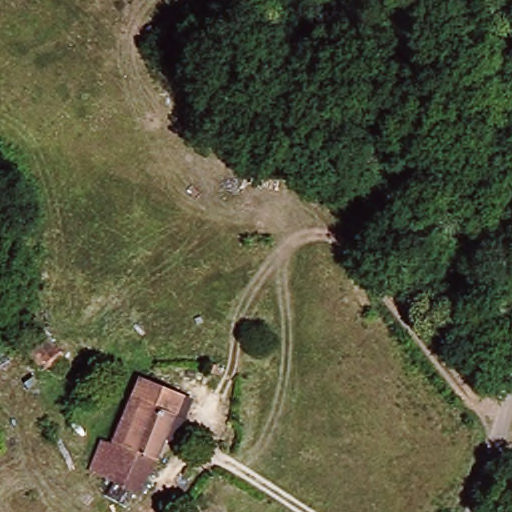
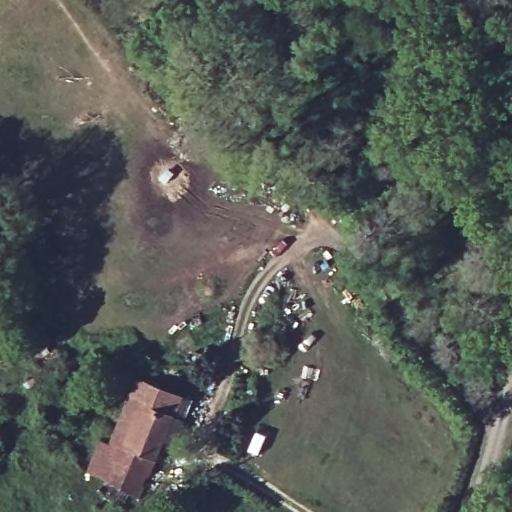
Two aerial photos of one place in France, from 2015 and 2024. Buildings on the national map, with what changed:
unchanged [(154,460),(130,486),(92,469),(145,372),(186,395),(154,460)]

